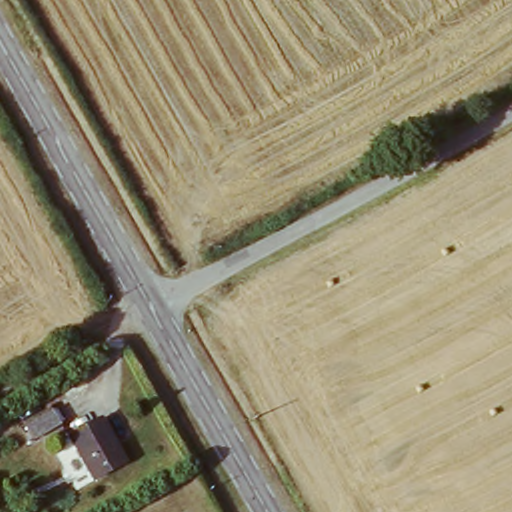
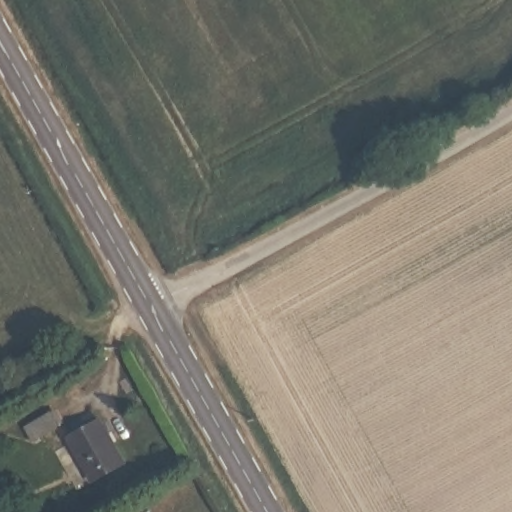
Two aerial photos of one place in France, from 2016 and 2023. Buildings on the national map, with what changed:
unchanged [(58,420),(30,435),(20,420),(47,404),(58,420)]
unchanged [(127,461),(94,481),(65,434),(97,413),(111,436),(127,461)]

